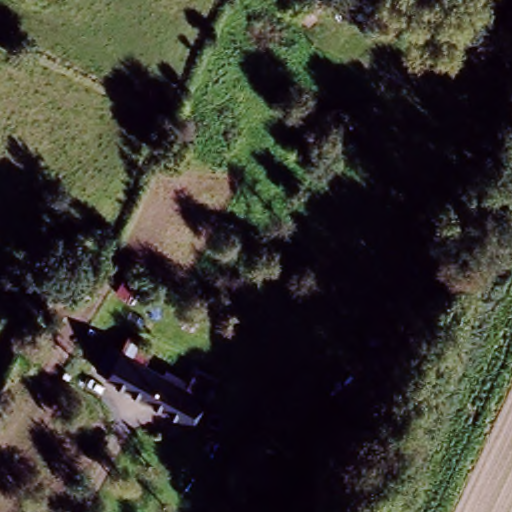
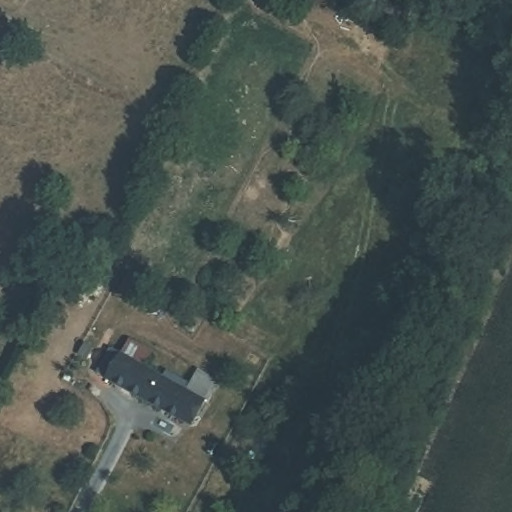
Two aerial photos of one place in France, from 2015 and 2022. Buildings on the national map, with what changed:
unchanged [(393,37),(316,0),(385,0),(406,10),(393,37)]
unchanged [(195,375),(216,386),(206,405),(191,431),(103,385),(116,358),(130,366),(136,352),(157,363),(151,376),(185,394),(195,375)]
unchanged [(327,467),(306,509),(281,496),(303,455),(327,467)]

